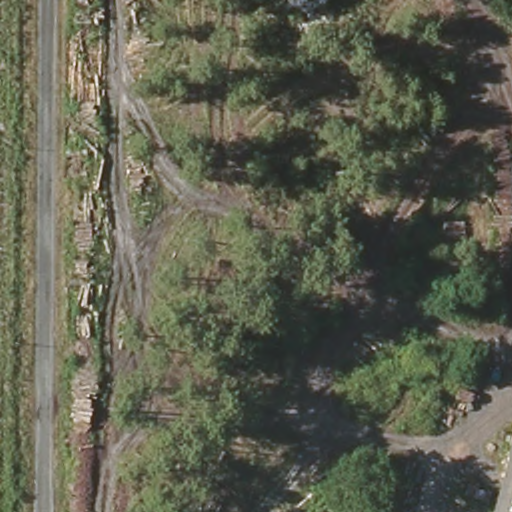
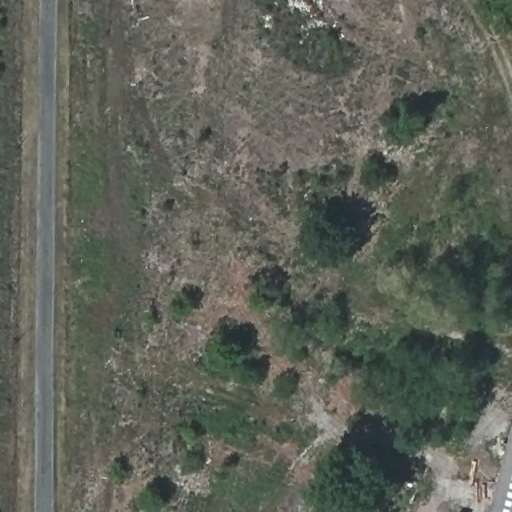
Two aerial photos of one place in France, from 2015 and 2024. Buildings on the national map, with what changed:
unchanged [(512,473),(512,512),(502,512),(512,473)]

